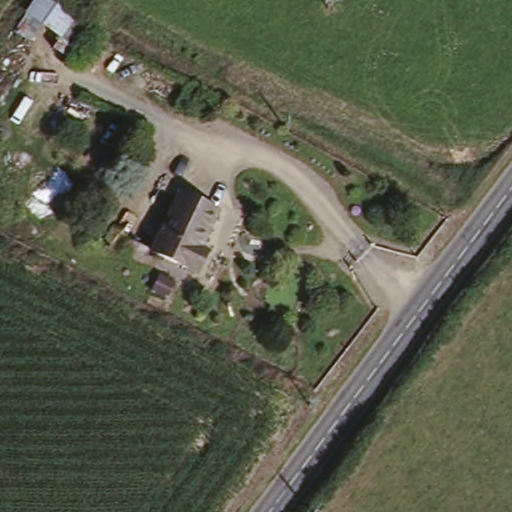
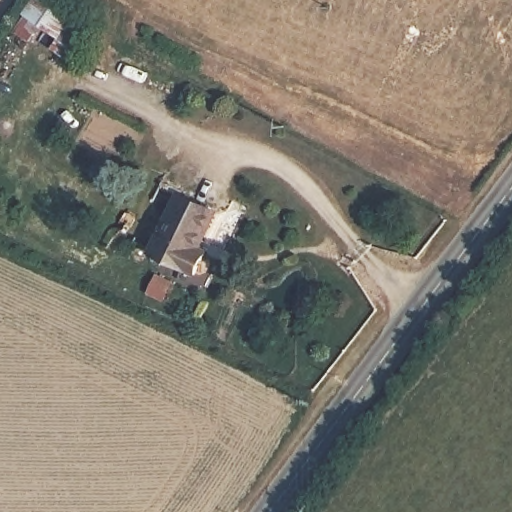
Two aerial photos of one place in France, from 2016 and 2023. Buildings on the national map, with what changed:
unchanged [(84,21),(63,55),(46,45),(53,33),(21,13),(29,0),(48,0),(84,21)]
unchanged [(213,211),(200,243),(207,246),(197,268),(151,250),(175,196),(213,211)]
unchanged [(177,277),(170,293),(157,287),(163,272),(177,277)]

